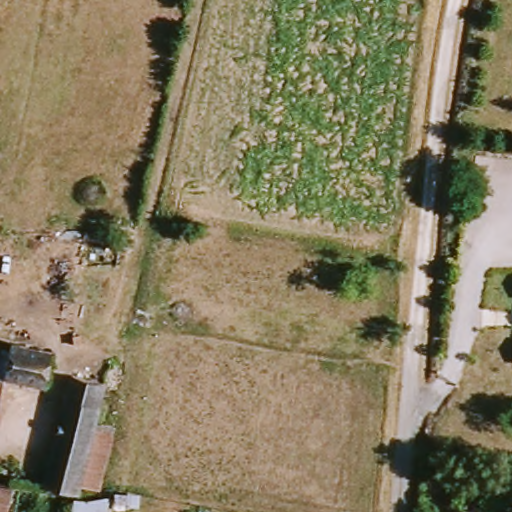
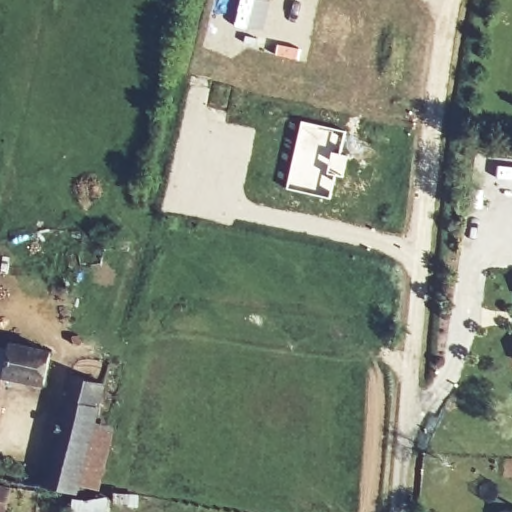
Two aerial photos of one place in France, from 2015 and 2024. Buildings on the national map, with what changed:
new [(301,120),(346,131),(339,154),(347,156),(341,176),(336,175),(330,195),(286,187),(301,120)]
unchanged [(45,348),(50,348),(50,360),(48,382),(11,377),(3,421),(0,421),(0,342),(45,348)]
unchanged [(91,424),(70,488),(38,480),(71,377),(104,385),(91,424)]
unchanged [(91,424),(109,428),(93,493),(70,488),(91,424)]
unchanged [(10,489),(6,512),(0,512),(0,487),(10,489)]
unchanged [(119,492),(144,496),(143,508),(118,505),(119,492)]
unchanged [(94,500),(94,497),(111,499),(110,512),(72,512),(76,497),(94,500)]

